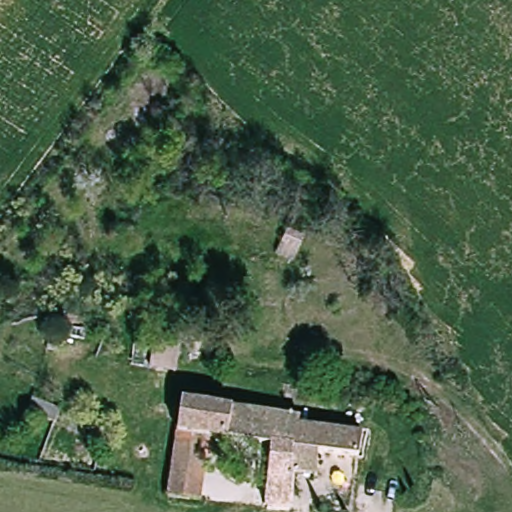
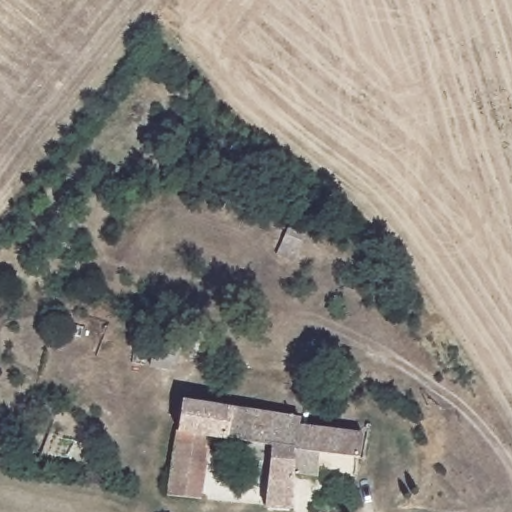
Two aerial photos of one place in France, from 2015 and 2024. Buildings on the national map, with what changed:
unchanged [(280,253),(292,223),(311,230),(299,258),(280,253)]
unchanged [(326,455),(324,476),(302,475),(300,505),(265,503),(272,450),(263,449),(261,465),(224,461),(226,442),(214,441),(180,436),(184,407),(299,422),(298,431),(362,438),(360,458),(326,455)]
unchanged [(207,500),(172,496),(180,436),(214,441),(207,500)]

